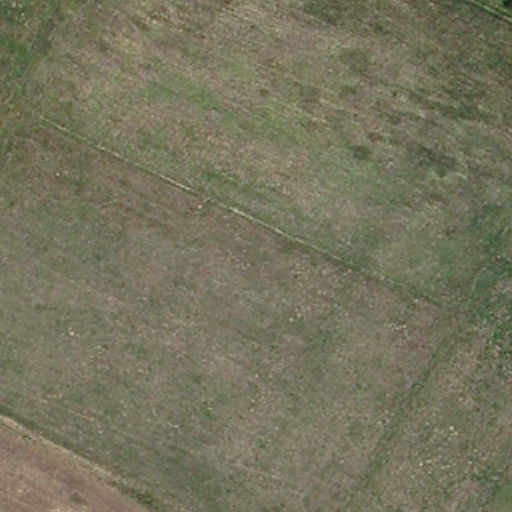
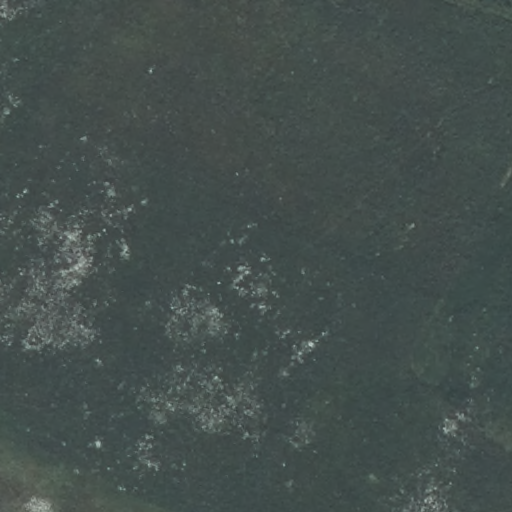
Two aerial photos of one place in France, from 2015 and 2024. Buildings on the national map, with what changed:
[]

